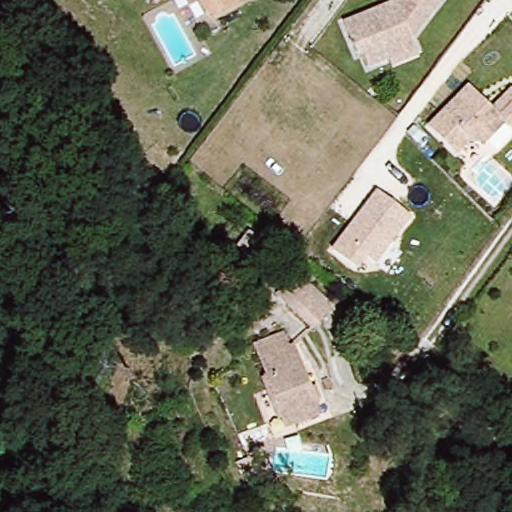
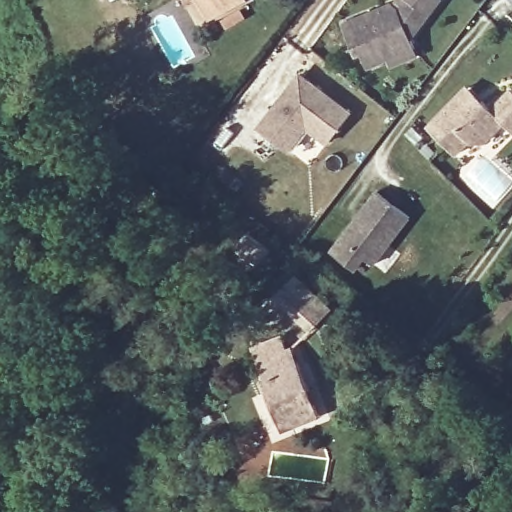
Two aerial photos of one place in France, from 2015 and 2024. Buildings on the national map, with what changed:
unchanged [(190,0),(245,0),(219,16),(209,0),(195,9),(190,0)]
unchanged [(411,27),(414,36),(367,56),(361,41),(356,44),(343,12),(373,0),(432,0),(411,27)]
new [(289,85),(299,71),(349,110),(325,140),(305,124),(287,147),(258,124),(276,100),(289,85)]
unchanged [(511,93),(512,94),(512,135),(504,126),(485,144),(467,145),(454,158),(427,129),(462,95),(467,90),(481,102),(491,111),(511,93)]
unchanged [(411,220),(376,267),(367,260),(356,272),(330,253),(375,193),(411,220)]
unchanged [(270,260),(248,245),(259,230),(280,244),(270,260)]
unchanged [(289,290),(308,268),(322,279),(343,296),(324,318),(304,301),(289,290)]
unchanged [(285,353),(292,351),(316,415),(289,428),(284,418),(277,422),(254,364),(258,362),(253,347),(279,337),(285,353)]

